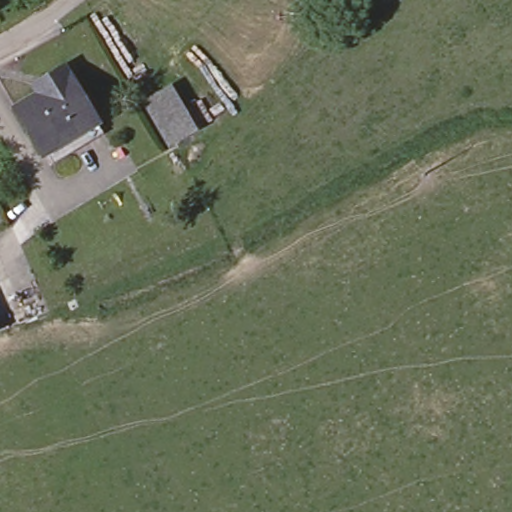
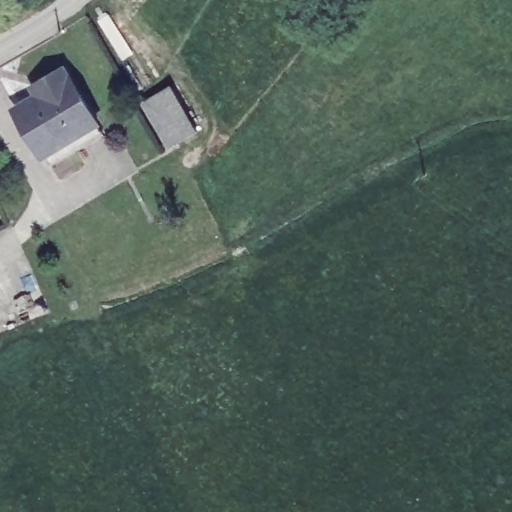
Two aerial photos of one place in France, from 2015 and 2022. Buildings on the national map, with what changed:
unchanged [(50,162),(43,151),(15,104),(38,90),(34,82),(44,76),(64,64),(98,118),(105,130),(50,162)]
unchanged [(171,86),(196,131),(171,146),(144,102),(171,86)]

